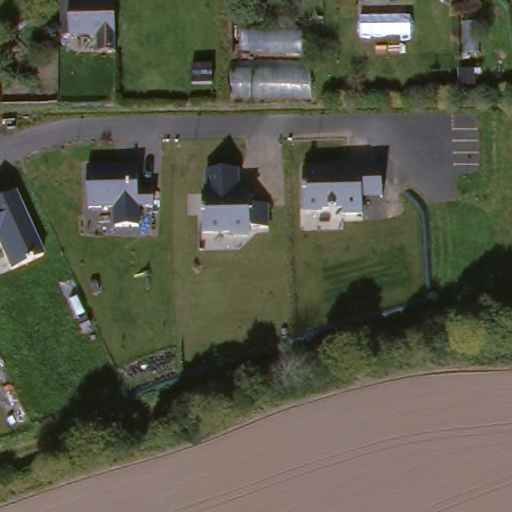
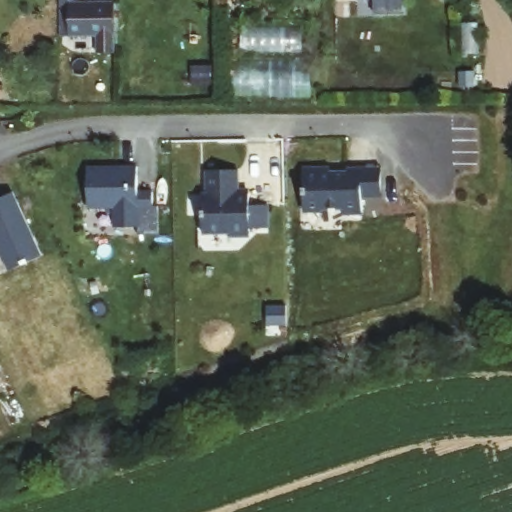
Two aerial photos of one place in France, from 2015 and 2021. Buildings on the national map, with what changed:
unchanged [(59,0),(77,0),(78,0),(113,0),(114,49),(96,50),(96,33),(59,32),(59,0)]
unchanged [(354,1),(354,0),(365,0),(354,1)]
unchanged [(112,227),(113,209),(88,209),(87,169),(139,168),(138,186),(154,186),(153,208),(138,208),(138,226),(112,227)]
unchanged [(377,174),(377,201),(361,201),(359,216),(297,216),(297,175),(377,174)]
unchanged [(239,177),(238,195),(247,196),(246,207),(263,208),(263,227),(244,225),(244,241),(195,238),(196,199),(208,199),(209,176),(239,177)]
unchanged [(0,261),(0,199),(8,195),(37,255),(4,271),(0,261)]

